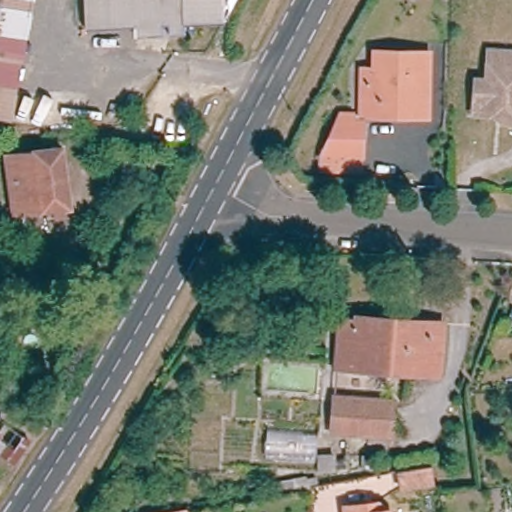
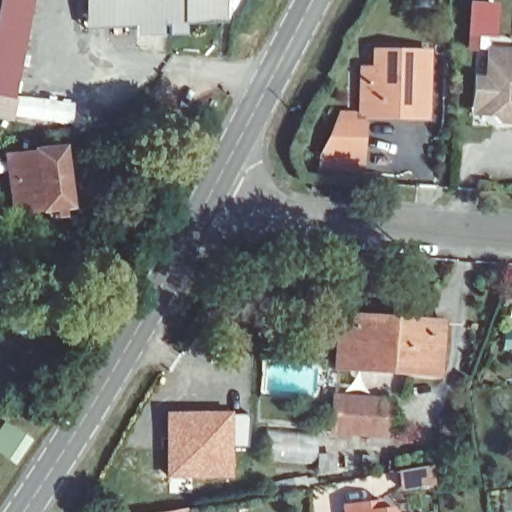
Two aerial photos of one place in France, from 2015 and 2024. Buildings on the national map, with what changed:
unchanged [(1,0),(29,0),(19,47),(4,129),(0,128),(0,5),(1,0)]
unchanged [(87,31),(86,0),(111,0),(113,30),(87,31)]
unchanged [(185,26),(186,40),(170,41),(169,27),(113,30),(111,0),(237,0),(223,24),(185,26)]
unchanged [(493,120),(468,117),(474,75),(484,77),(488,48),(512,49),(512,128),(494,126),(493,120)]
unchanged [(359,110),(361,73),(377,74),(379,53),(410,56),(433,57),(429,124),(407,121),(359,117),(359,110)]
unchanged [(332,124),(359,126),(356,162),(311,158),(332,124)]
unchanged [(63,149),(69,207),(14,212),(7,154),(63,149)]
unchanged [(335,327),(349,327),(349,322),(373,322),(398,321),(426,320),(440,320),(442,373),(428,373),(336,377),(335,327)]
unchanged [(390,403),(390,438),(334,440),(332,404),(390,403)]
new [(232,411),(232,414),(248,415),(246,448),(231,447),(230,479),(166,480),(163,412),(232,411)]
unchanged [(8,427),(29,442),(13,467),(0,458),(0,440),(8,427)]
unchanged [(402,495),(397,477),(432,472),(435,490),(402,495)]
unchanged [(343,512),(378,507),(379,512),(344,512),(343,512)]

